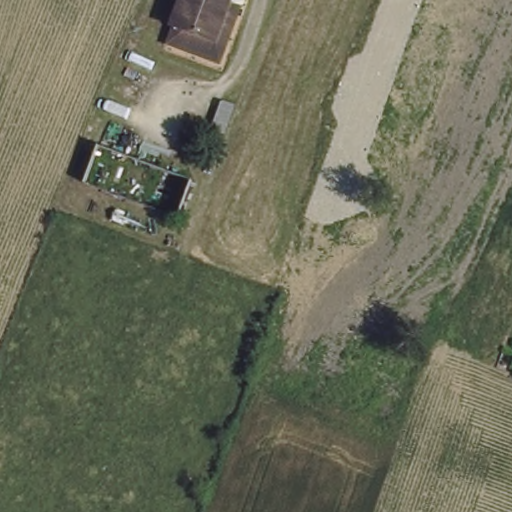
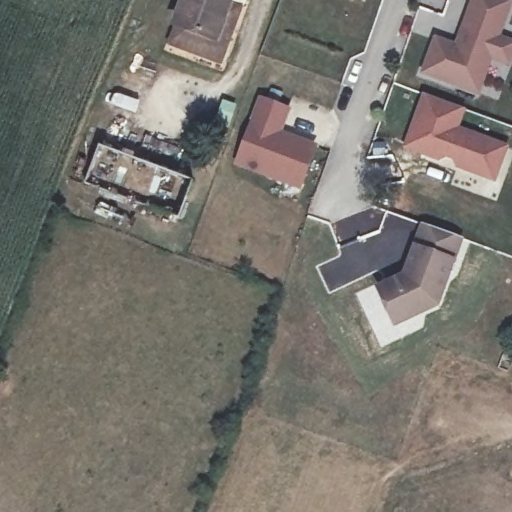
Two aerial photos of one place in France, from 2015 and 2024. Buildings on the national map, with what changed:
unchanged [(244,8),(222,65),(169,43),(178,20),(216,38),(230,0),(244,8)]
unchanged [(178,20),(186,0),(230,0),(216,38),(178,20)]
new [(433,35),(454,42),(469,0),(509,0),(512,1),(499,35),(512,39),(512,56),(509,65),(491,59),(479,94),(419,72),(433,35)]
new [(494,182),(402,147),(422,93),(464,110),(458,125),(509,144),(494,182)]
new [(220,159),(235,117),(248,121),(256,96),(291,108),(283,131),(316,144),(299,190),(220,159)]
new [(373,286),(401,273),(419,223),(463,239),(455,259),(438,306),(391,328),(373,286)]

